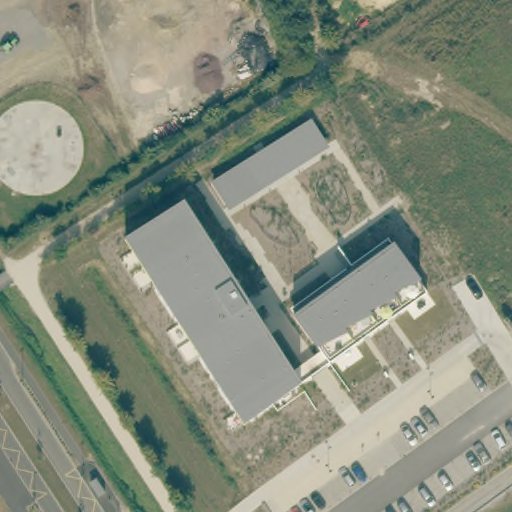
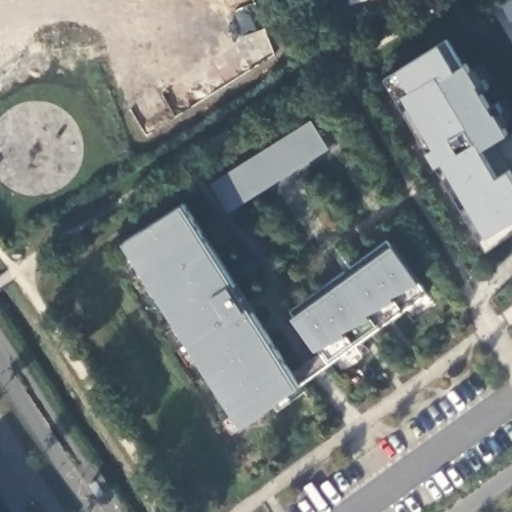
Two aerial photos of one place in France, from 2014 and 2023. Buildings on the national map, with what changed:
new [(512,22),(510,23),(499,6),(509,0),(512,0),(512,22)]
new [(401,71),(399,68),(442,42),(448,39),(463,65),(467,62),(508,134),(482,149),(498,176),(510,169),(512,172),(512,233),(488,249),(387,77),(401,71)]
unchanged [(212,184),(311,121),(329,149),(231,210),(212,184)]
unchanged [(300,385),(244,424),(125,239),(184,202),(294,374),(320,356),(317,349),(292,317),(392,246),(420,282),(427,295),(330,363),(300,385)]

